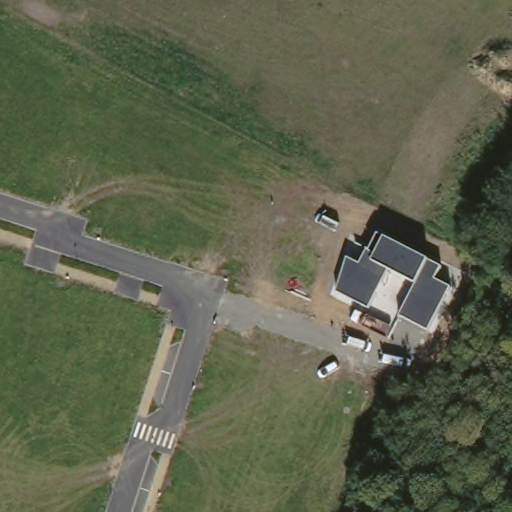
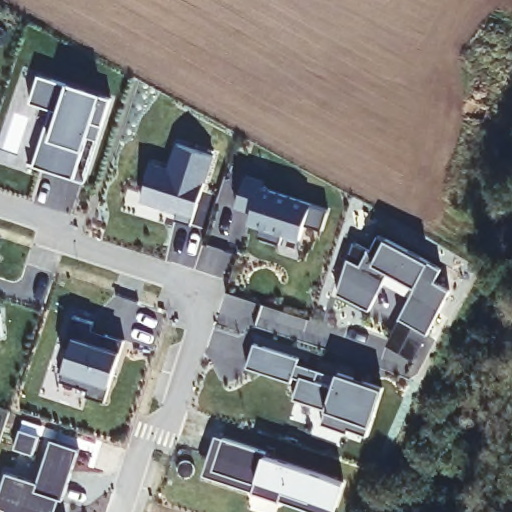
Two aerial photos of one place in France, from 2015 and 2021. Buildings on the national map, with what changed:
new [(44,136),(50,139),(59,111),(30,101),(39,75),(111,99),(84,180),(35,164),(44,136)]
new [(246,175),(264,180),(263,185),(312,200),(311,205),(328,210),(323,229),(305,225),(301,240),(284,234),(280,243),(259,235),(261,226),(249,222),(253,211),(236,205),(246,175)]
unchanged [(348,256),(360,263),(368,248),(371,250),(380,234),(386,236),(428,260),(442,267),(436,279),(452,286),(429,332),(400,317),(417,285),(389,270),(369,306),(338,292),(348,256)]
new [(71,345),(64,343),(74,313),(93,320),(89,331),(104,336),(105,332),(124,338),(104,399),(86,393),(88,387),(60,378),(71,345)]
new [(253,343),(298,358),(297,364),(318,371),(314,381),(333,387),(337,373),(382,388),(367,435),(349,429),(347,433),(320,424),(325,410),(292,399),(299,380),(292,377),(290,382),(245,367),(253,343)]
new [(279,504),(252,494),(252,493),(202,476),(215,437),(222,440),(266,454),(265,458),(344,484),(336,508),(335,512),(310,512),(280,502),(279,504)]

